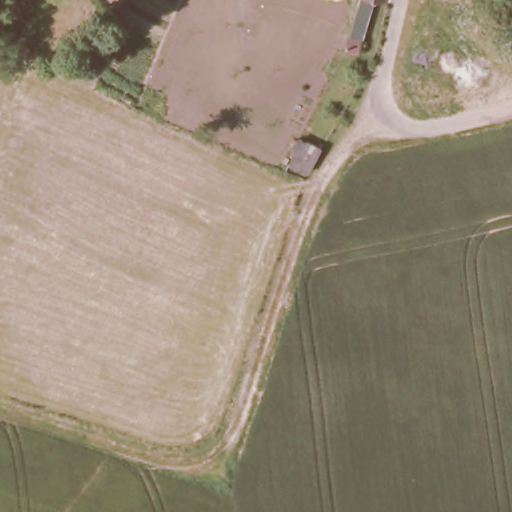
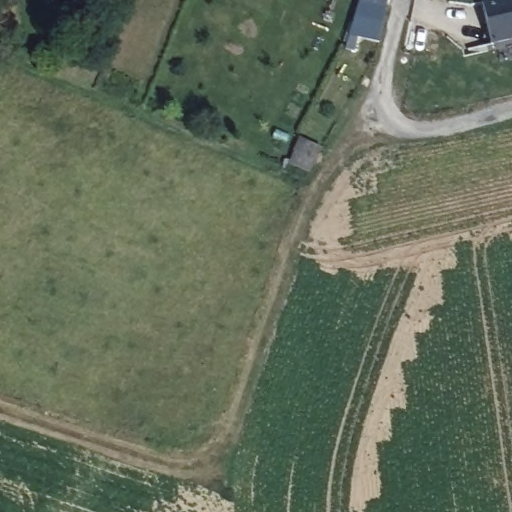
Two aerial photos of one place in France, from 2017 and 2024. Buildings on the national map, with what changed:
unchanged [(364,52),(343,49),(349,35),(358,0),(374,0),(364,52)]
new [(483,1),(490,0),(512,0),(512,41),(492,45),(483,1)]
unchanged [(291,170),(303,147),(320,155),(304,178),(291,170)]

